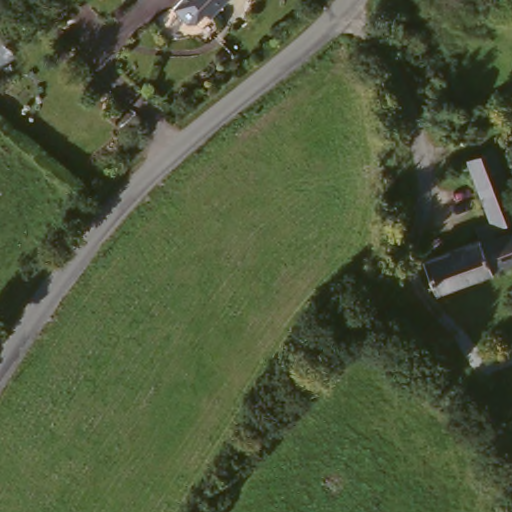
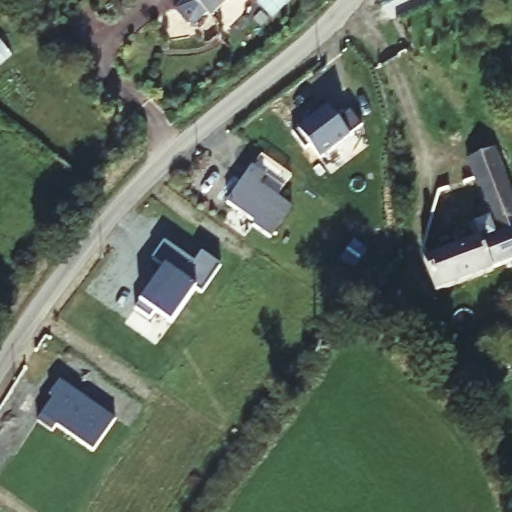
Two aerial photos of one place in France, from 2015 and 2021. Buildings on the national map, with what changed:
unchanged [(213,12),(207,19),(192,22),(179,11),(188,0),(227,0),(215,13),(213,12)]
demolished [(0,77),(0,39),(18,55),(0,77)]
new [(362,125),(349,134),(350,137),(318,161),(295,131),(328,106),(339,117),(351,110),(362,125)]
unchanged [(467,161),(495,151),(512,195),(512,222),(493,230),(467,161)]
new [(266,174),(260,185),(292,207),(272,237),(252,223),(254,221),(227,202),(252,167),(266,174)]
unchanged [(492,269),(493,272),(437,292),(425,261),(480,239),(481,242),(512,231),(512,261),(492,269)]
new [(195,262),(202,252),(221,264),(202,293),(198,287),(174,324),(142,301),(167,266),(155,257),(165,241),(195,262)]
new [(54,396),(50,393),(60,378),(116,417),(94,450),(57,424),(52,430),(37,419),(54,396)]

